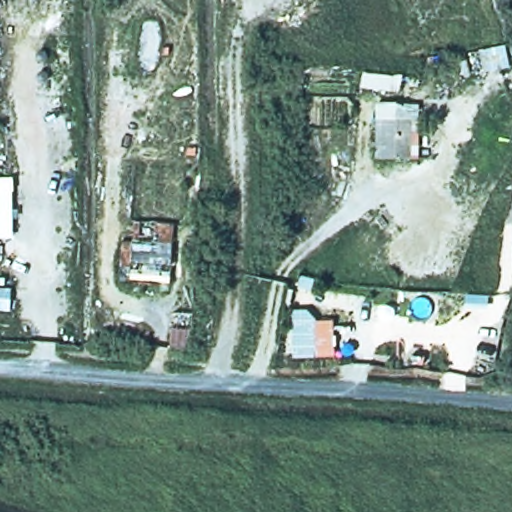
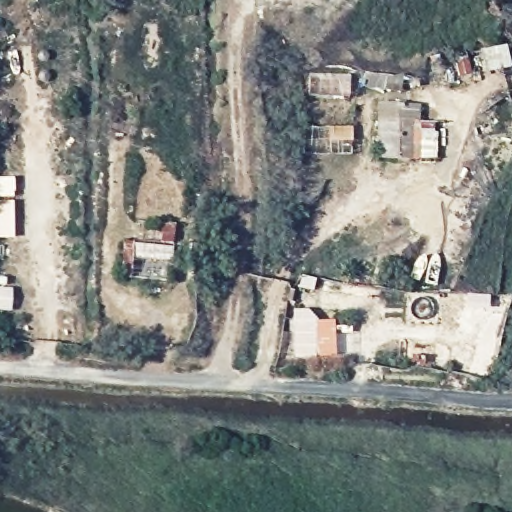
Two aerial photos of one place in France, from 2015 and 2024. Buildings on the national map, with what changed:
unchanged [(417,117),(414,162),(372,159),(375,109),(417,117)]
unchanged [(123,249),(173,254),(168,294),(119,288),(123,249)]
unchanged [(290,317),(311,317),(314,327),(329,326),(334,363),(293,364),(290,317)]

